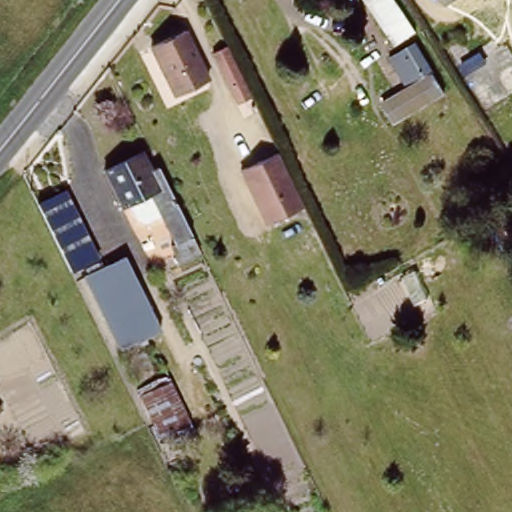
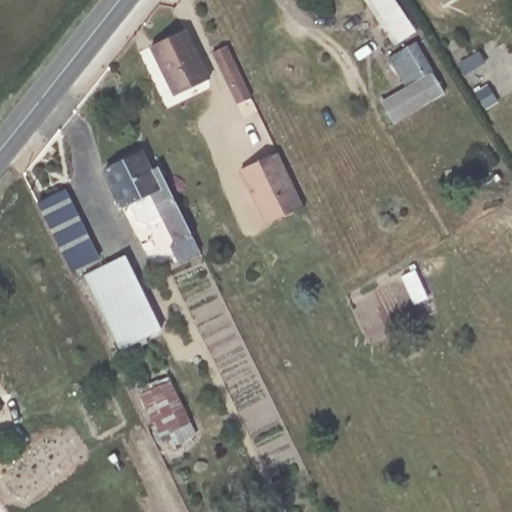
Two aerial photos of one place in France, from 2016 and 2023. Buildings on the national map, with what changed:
unchanged [(398,41),(375,0),(402,0),(419,30),(398,41)]
unchanged [(205,76),(172,95),(150,45),(183,28),(205,76)]
unchanged [(248,92),(232,100),(206,52),(224,44),(248,92)]
unchanged [(440,96),(390,124),(379,105),(402,91),(383,60),(410,45),(440,96)]
unchanged [(307,202),(270,218),(242,165),(282,148),(307,202)]
unchanged [(132,198),(125,201),(106,161),(133,149),(143,169),(159,162),(171,187),(175,196),(140,212),(132,198)]
unchanged [(71,268),(64,253),(40,201),(65,189),(90,240),(97,255),(71,268)]
unchanged [(175,196),(201,249),(177,260),(170,245),(176,242),(161,211),(143,219),(140,212),(175,196)]
unchanged [(150,344),(145,348),(142,341),(125,350),(87,274),(125,255),(163,330),(147,338),(150,344)]
unchanged [(170,383),(190,425),(165,437),(143,392),(170,383)]
unchanged [(0,388),(12,401),(0,410),(0,388)]

